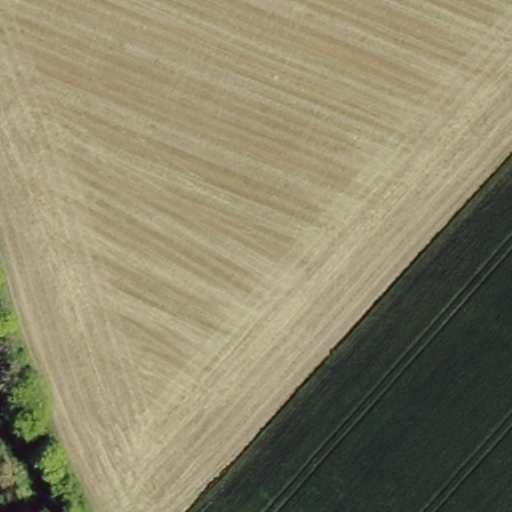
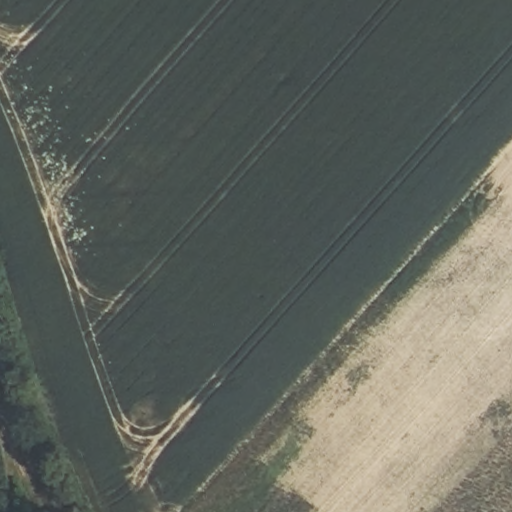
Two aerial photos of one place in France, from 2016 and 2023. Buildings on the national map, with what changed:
unchanged [(0,481),(0,455),(7,477),(0,481)]

